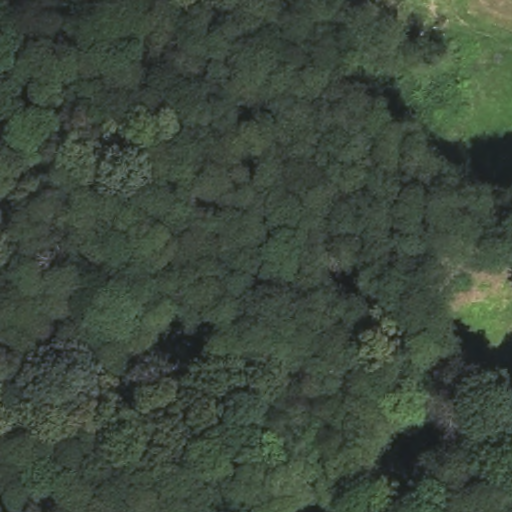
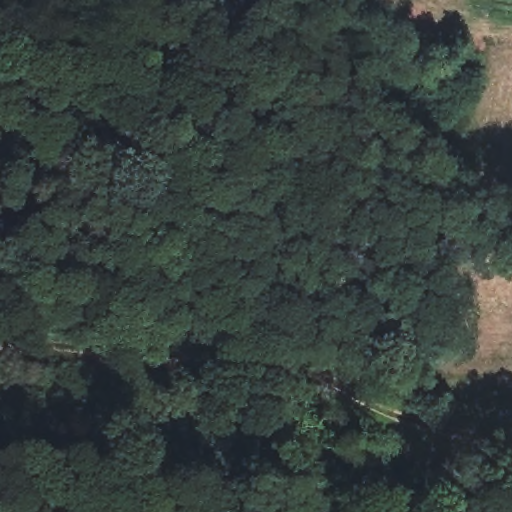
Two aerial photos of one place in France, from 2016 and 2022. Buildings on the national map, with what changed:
unchanged [(134,484),(165,486),(162,512),(157,512),(131,509),(134,484)]

